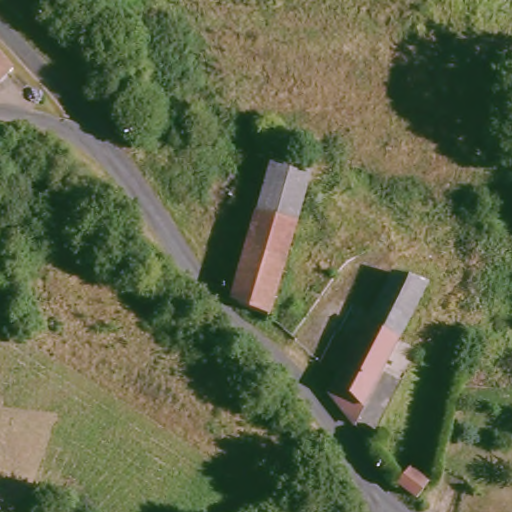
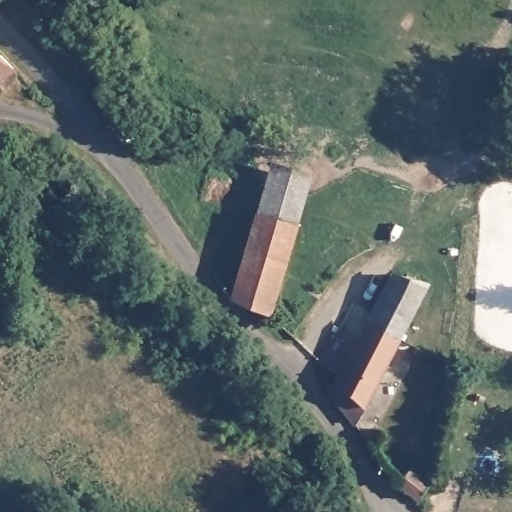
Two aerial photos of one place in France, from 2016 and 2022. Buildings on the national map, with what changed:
unchanged [(0,83),(0,63),(10,73),(0,83)]
unchanged [(255,214),(270,162),(307,172),(293,223),(255,214)]
unchanged [(267,312),(227,301),(252,213),(255,214),(293,223),(267,312)]
unchanged [(334,379),(335,374),(304,360),(315,333),(330,339),(332,336),(353,344),(384,275),(395,270),(423,283),(351,423),(323,392),(334,379)]
unchanged [(407,468),(432,490),(431,499),(427,504),(422,506),(418,504),(395,484),(407,468)]

